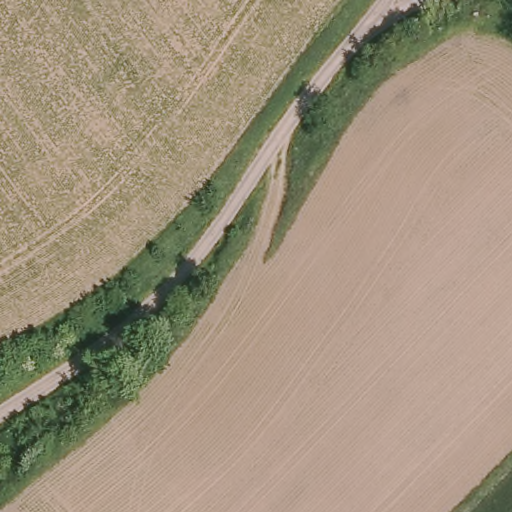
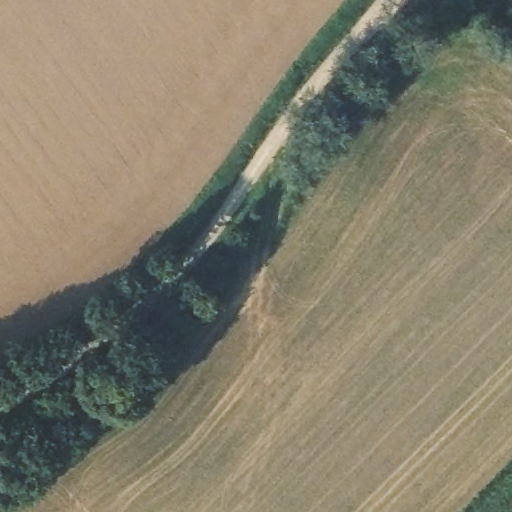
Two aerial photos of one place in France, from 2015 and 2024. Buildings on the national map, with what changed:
[]

